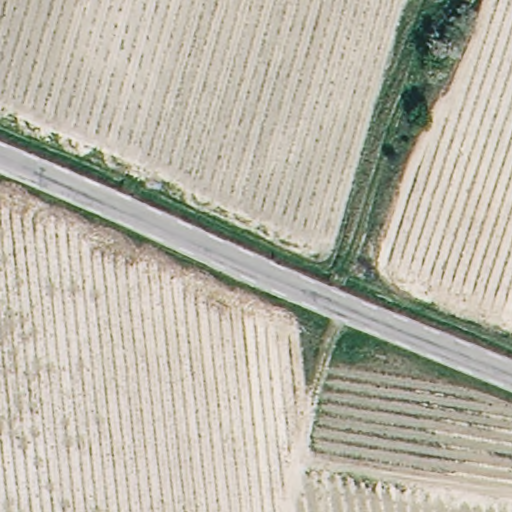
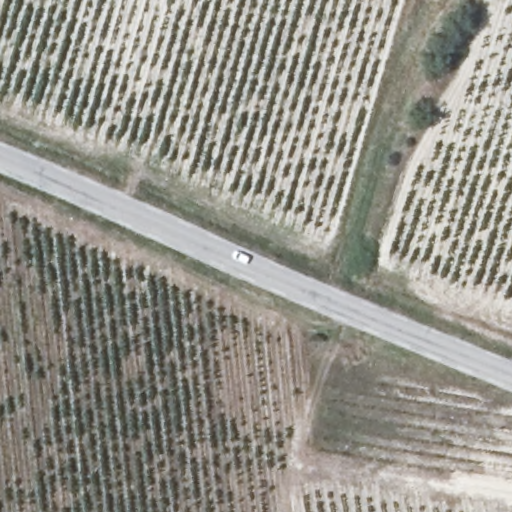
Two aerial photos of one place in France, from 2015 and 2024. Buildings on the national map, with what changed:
[]

